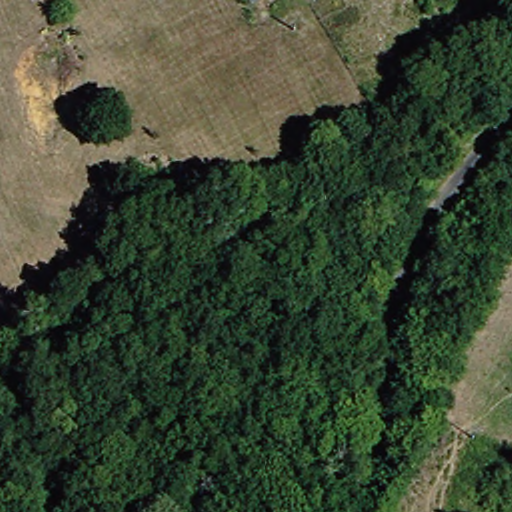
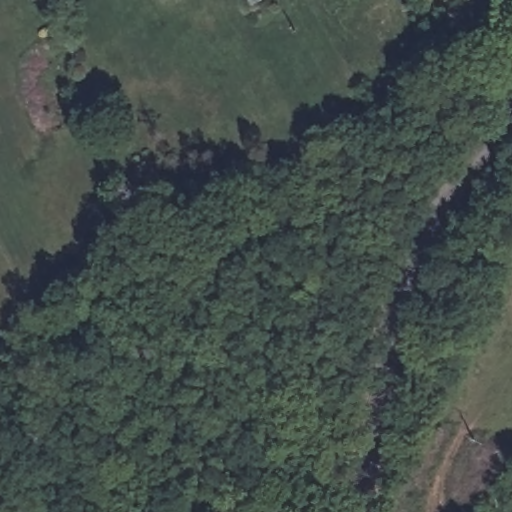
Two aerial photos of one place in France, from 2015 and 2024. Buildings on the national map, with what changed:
unchanged [(254,0),(277,0),(259,9),(254,0)]

